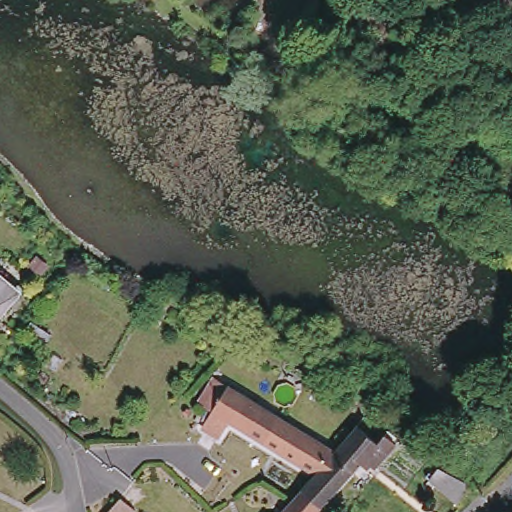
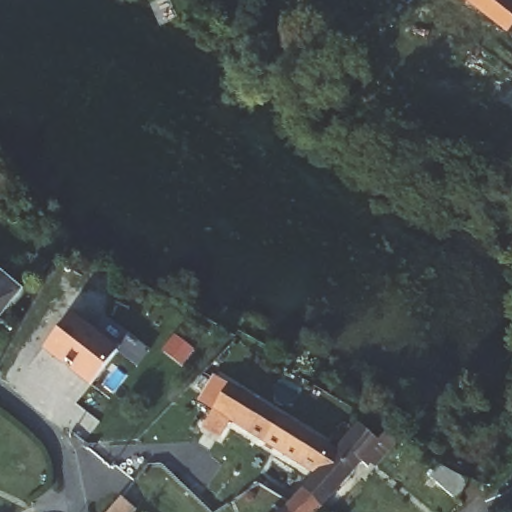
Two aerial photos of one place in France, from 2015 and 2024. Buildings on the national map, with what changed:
unchanged [(407,40),(350,16),(357,0),(371,0),(416,19),(407,40)]
unchanged [(428,0),(439,0),(427,18),(419,14),(428,0)]
unchanged [(512,17),(507,24),(476,0),(512,0),(512,17)]
unchanged [(20,285),(0,309),(0,269),(20,285)]
new [(105,316),(149,350),(136,366),(117,351),(89,386),(69,370),(72,366),(65,361),(61,365),(41,349),(69,313),(85,326),(105,316)]
unchanged [(316,465),(230,414),(220,431),(203,420),(212,404),(204,398),(217,376),(225,381),(335,445),(320,461),(316,465)]
unchanged [(315,390),(306,405),(301,402),(305,395),(302,393),(307,386),(315,390)]
unchanged [(304,480),(316,465),(320,461),(335,445),(357,420),(377,438),(323,498),(304,480)]
unchanged [(468,485),(462,494),(446,483),(452,473),(468,485)]
unchanged [(304,480),(323,498),(310,512),(276,512),(289,497),(304,480)]
unchanged [(122,512),(100,512),(117,492),(130,503),(122,512)]

